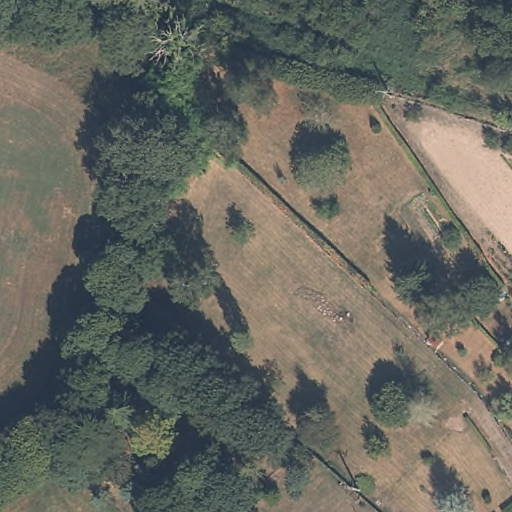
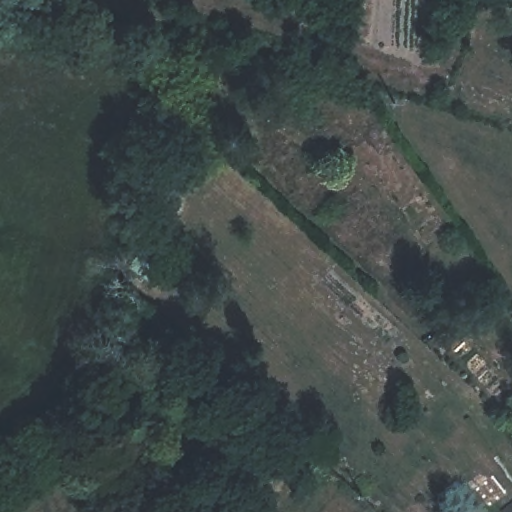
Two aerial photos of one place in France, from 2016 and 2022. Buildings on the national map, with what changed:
[]

